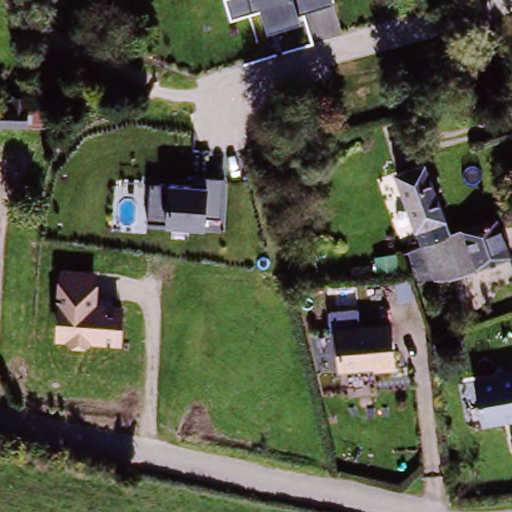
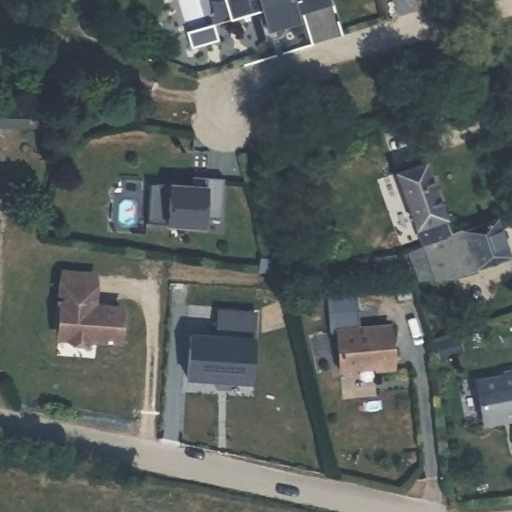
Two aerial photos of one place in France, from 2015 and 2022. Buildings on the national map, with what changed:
demolished [(122,2),(122,0),(167,0),(167,4),(122,2)]
unchanged [(300,14),(302,22),(267,32),(262,13),(230,21),(224,0),(332,0),(334,5),(300,14)]
unchanged [(22,126),(0,126),(0,108),(24,109),(22,126)]
unchanged [(447,216),(452,232),(466,225),(498,215),(511,260),(479,269),(435,279),(417,284),(405,249),(419,243),(415,227),(394,166),(426,158),(447,216)]
unchanged [(201,185),(202,177),(222,177),(219,219),(205,218),(203,229),(148,226),(151,183),(201,185)]
unchanged [(99,274),(97,302),(125,304),(121,347),(87,344),(86,348),(67,345),(67,340),(55,339),(59,270),(99,274)]
unchanged [(344,328),(336,329),(334,307),(364,308),(365,325),(400,327),(399,371),(342,369),(344,328)]
new [(257,312),(256,338),(252,384),(187,379),(191,333),(216,334),(218,308),(257,312)]
unchanged [(504,373),(504,364),(512,363),(512,421),(480,425),(475,377),(504,373)]

